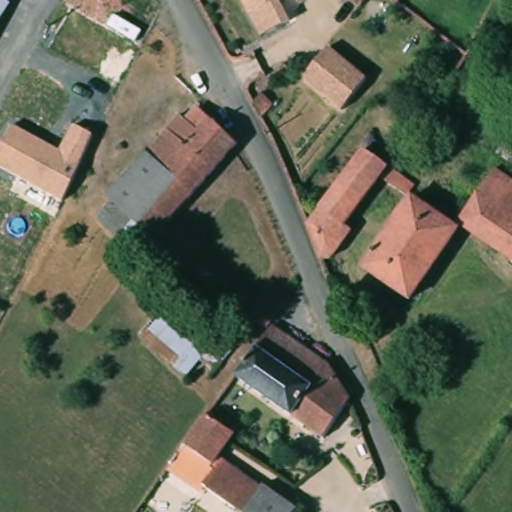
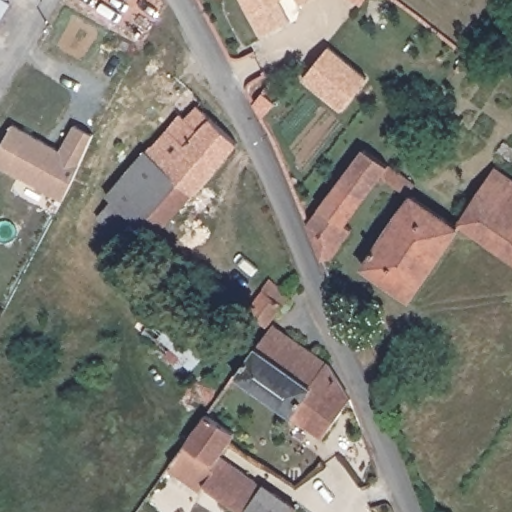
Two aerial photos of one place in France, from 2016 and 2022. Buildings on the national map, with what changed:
unchanged [(0,6),(0,0),(4,0),(0,6)]
unchanged [(246,19),(233,0),(274,0),(286,18),(265,33),(258,37),(246,19)]
unchanged [(349,9),(337,0),(357,0),(349,9)]
unchanged [(368,75),(341,111),(299,79),(327,45),(368,75)]
unchanged [(253,103),(262,93),(276,103),(271,107),(260,117),(253,103)]
unchanged [(220,151),(215,161),(130,256),(111,239),(101,230),(90,220),(106,202),(102,198),(148,146),(150,147),(175,119),(179,122),(189,109),(195,113),(197,109),(220,151)]
unchanged [(59,150),(71,124),(94,134),(62,200),(0,168),(0,148),(13,123),(59,150)]
unchanged [(407,186),(399,197),(379,183),(370,176),(333,225),(341,231),(323,255),(318,258),(312,259),(297,224),(354,150),(384,171),(407,186)]
unchanged [(486,168),(510,183),(512,185),(512,266),(449,225),(486,168)]
unchanged [(404,199),(447,228),(450,230),(397,302),(352,269),(403,200),(404,199)]
unchanged [(261,331),(241,315),(245,309),(254,298),(258,290),(262,283),(284,298),(261,331)]
unchanged [(205,379),(189,368),(180,377),(147,351),(153,337),(135,328),(155,304),(225,347),(205,379)]
unchanged [(317,439),(232,378),(268,326),(324,366),(346,401),(317,439)]
unchanged [(230,409),(242,418),(213,456),(255,486),(257,484),(291,508),(289,512),(232,512),(166,464),(201,415),(217,426),(230,409)]

